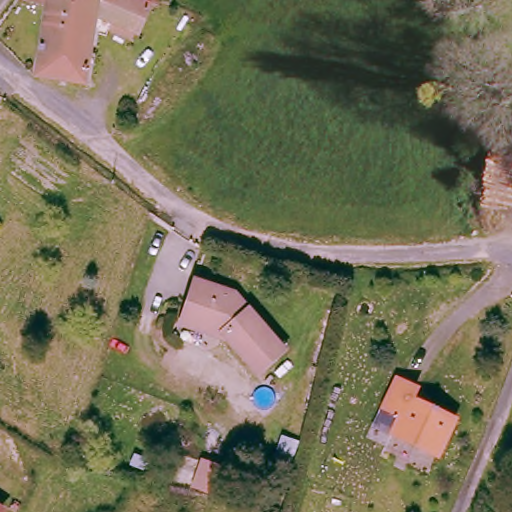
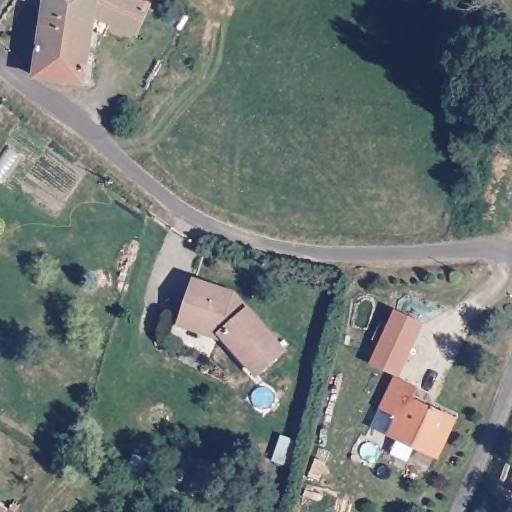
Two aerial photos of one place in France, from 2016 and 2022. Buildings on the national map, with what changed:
unchanged [(144,30),(101,15),(83,80),(37,70),(53,0),(51,0),(141,0),(154,5),(144,30)]
unchanged [(240,295),(239,300),(293,359),(268,383),(217,328),(213,332),(183,315),(205,275),(240,295)]
new [(397,374),(370,363),(396,309),(425,324),(400,377),(397,374)]
unchanged [(417,386),(413,397),(454,415),(435,452),(395,433),(404,414),(382,404),(397,374),(417,386)]
unchanged [(211,466),(205,489),(196,487),(202,464),(211,466)]

